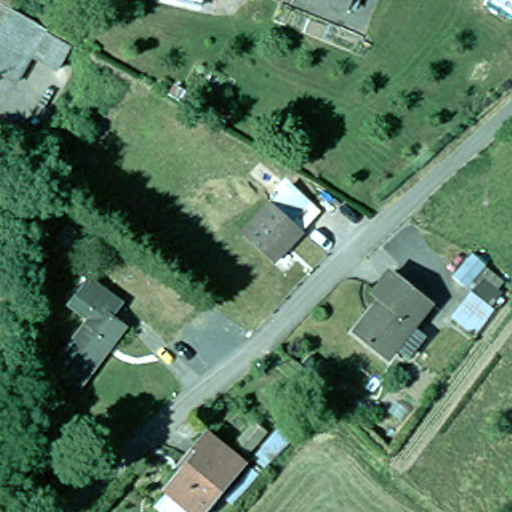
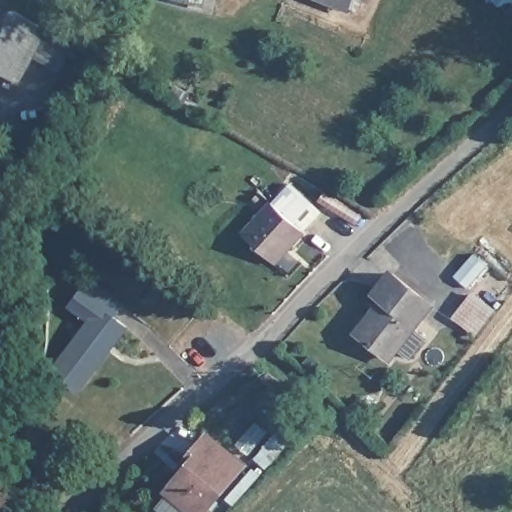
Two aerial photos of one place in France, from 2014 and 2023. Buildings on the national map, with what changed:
unchanged [(336,0),(352,0),(350,5),(336,0)]
unchanged [(512,8),(506,17),(475,1),(476,0),(512,0),(512,8)]
unchanged [(28,47),(19,71),(17,76),(0,68),(0,22),(6,7),(39,21),(38,24),(57,33),(57,32),(65,36),(56,58),(48,55),(28,47)]
unchanged [(276,247),(263,261),(232,231),(241,222),(265,198),(295,228),(276,247)]
unchanged [(108,307),(122,317),(75,378),(50,358),(88,309),(68,293),(80,278),(86,270),(100,281),(117,294),(108,307)]
unchanged [(357,330),(370,313),(373,316),(385,299),(373,290),(390,270),(428,303),(386,354),(357,330)]
unchanged [(480,284),(499,297),(471,336),(451,320),(480,284)]
unchanged [(197,511),(168,485),(185,465),(179,460),(205,431),(239,462),(197,511)]

